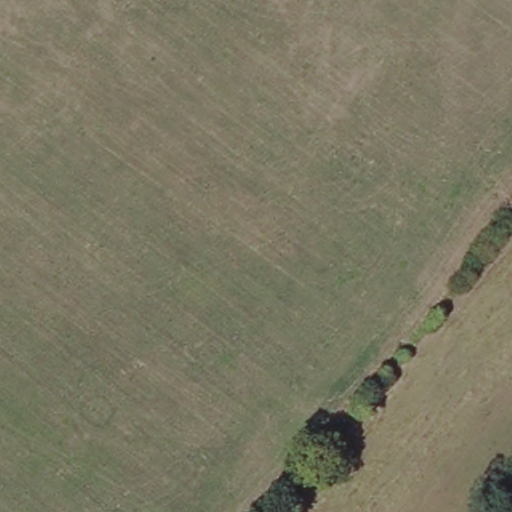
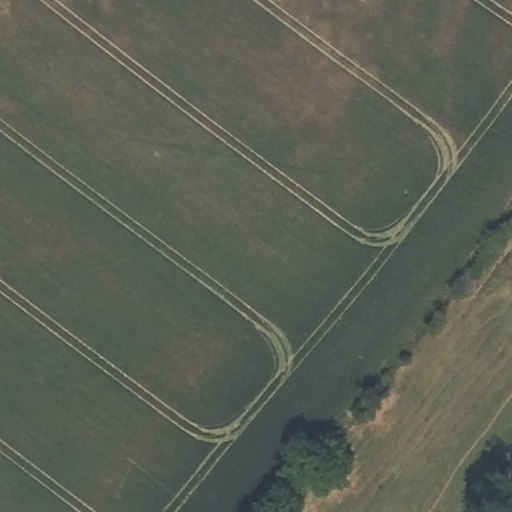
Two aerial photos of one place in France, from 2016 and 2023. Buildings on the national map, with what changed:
[]

